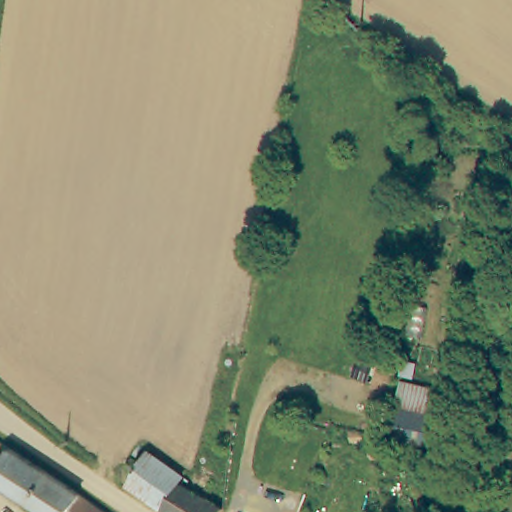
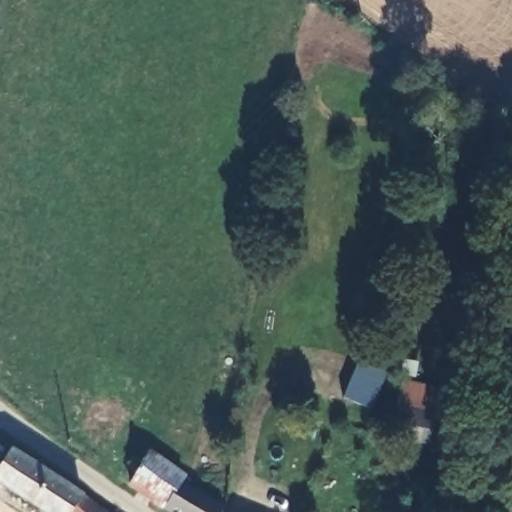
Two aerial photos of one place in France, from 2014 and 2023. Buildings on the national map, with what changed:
new [(359,359),(386,372),(371,409),(344,397),(359,359)]
unchanged [(392,431),(401,378),(438,385),(426,437),(392,431)]
unchanged [(132,468),(121,462),(129,450),(141,455),(147,445),(181,472),(177,479),(225,505),(220,512),(172,512),(165,507),(126,480),(132,468)]
unchanged [(38,512),(0,485),(0,468),(15,446),(107,512),(38,512)]

